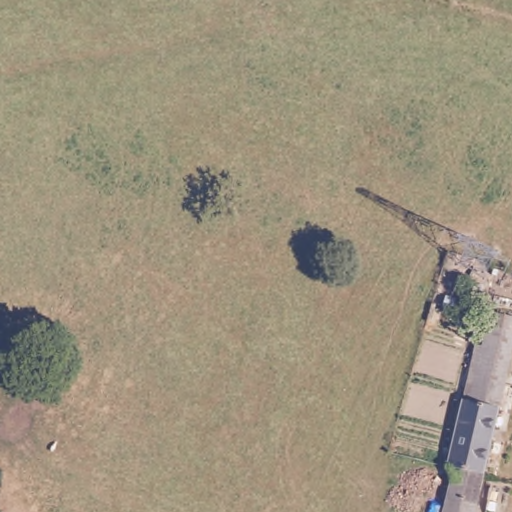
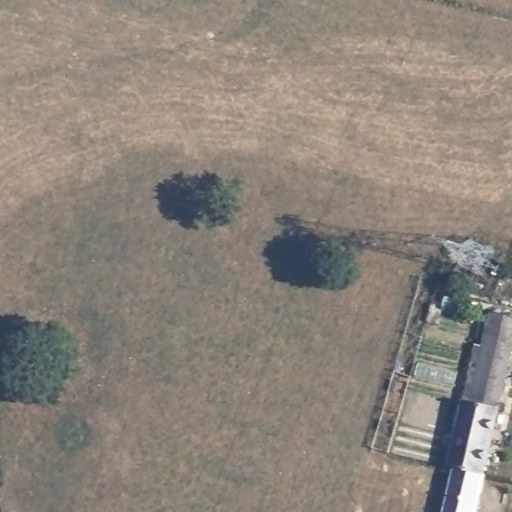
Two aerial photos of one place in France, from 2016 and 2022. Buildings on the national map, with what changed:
unchanged [(456,467),(447,464),(460,400),(468,401),(490,311),(499,313),(503,298),(512,301),(512,356),(483,472),(456,467)]
unchanged [(443,512),(452,472),(446,470),(447,464),(456,467),(483,472),(474,512),(443,512)]

